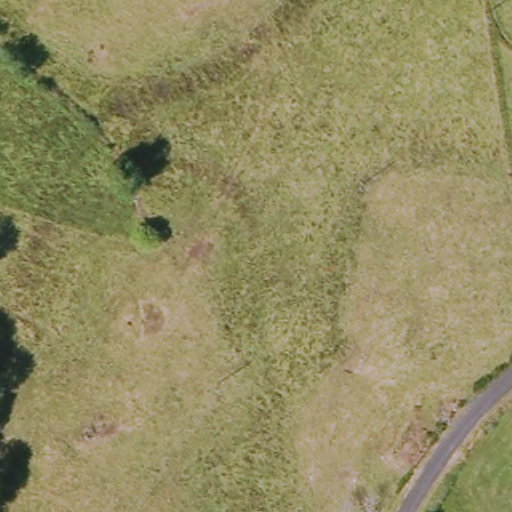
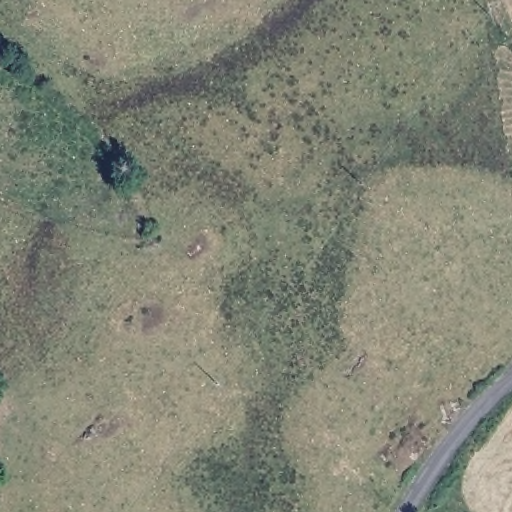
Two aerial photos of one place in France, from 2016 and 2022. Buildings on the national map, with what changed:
[]

